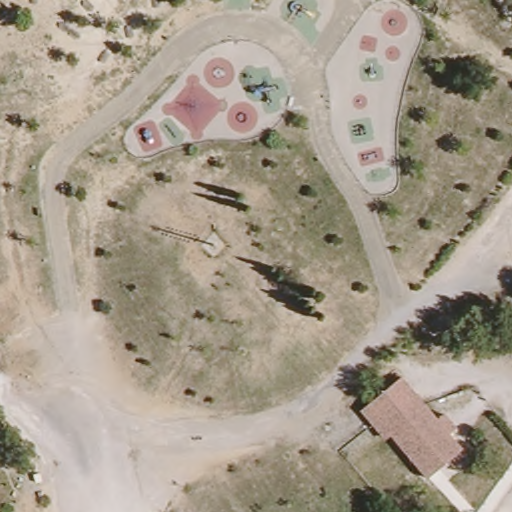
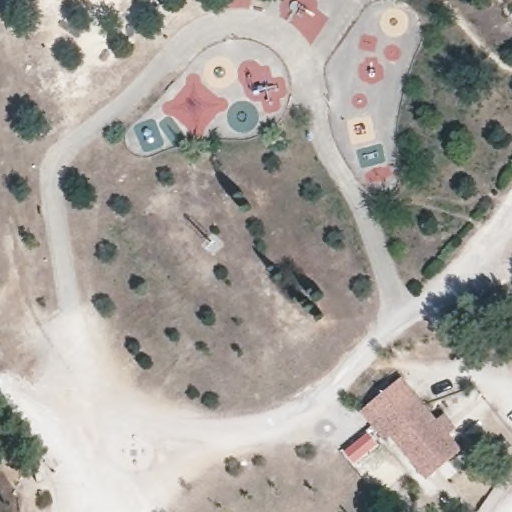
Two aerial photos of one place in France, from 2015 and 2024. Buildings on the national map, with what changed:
unchanged [(432,478),(395,432),(389,436),(366,407),(371,403),(405,376),(441,420),(448,414),(459,427),(452,433),(466,450),(432,478)]

